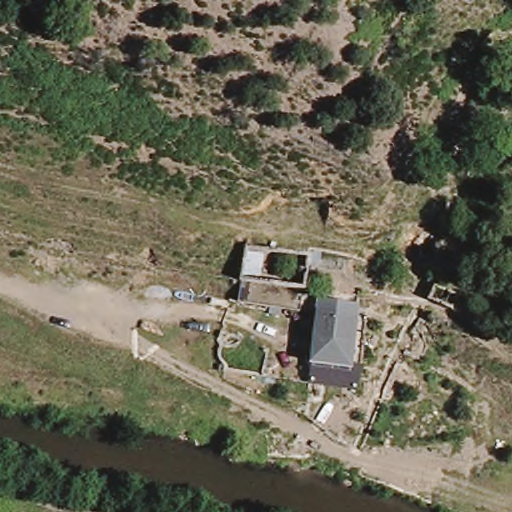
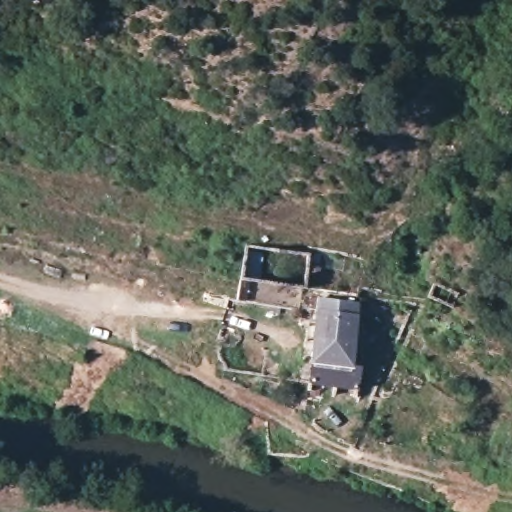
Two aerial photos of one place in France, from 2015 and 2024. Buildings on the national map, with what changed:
unchanged [(356,313),(353,362),(310,360),(315,311),(356,313)]

